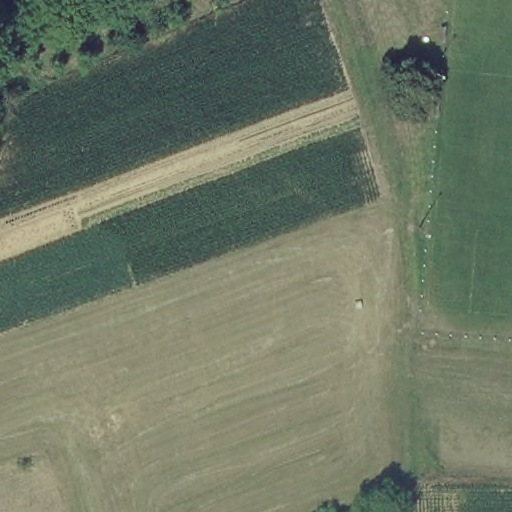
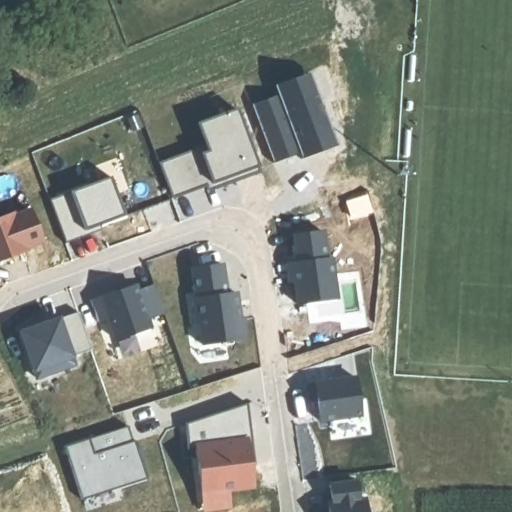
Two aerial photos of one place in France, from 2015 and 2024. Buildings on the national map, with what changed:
new [(308,70),(335,146),(300,158),(298,154),(275,93),(272,84),(308,70)]
new [(275,93),(298,154),(272,163),(250,103),(275,93)]
new [(207,145),(201,125),(240,111),(266,168),(180,203),(167,161),(207,145)]
new [(112,180),(125,218),(68,240),(57,203),(112,180)]
new [(46,244),(0,264),(0,220),(35,206),(46,244)]
new [(290,233),(325,230),(330,256),(337,298),(294,303),(284,262),(292,260),(290,233)]
new [(223,262),(228,291),(191,293),(187,267),(223,262)]
new [(153,280),(168,323),(116,344),(102,300),(153,280)]
new [(191,293),(228,291),(236,290),(246,337),(197,345),(195,336),(192,337),(186,294),(191,293)]
new [(70,314),(81,362),(40,381),(26,330),(70,314)]
new [(355,376),(361,415),(318,422),(311,382),(355,376)]
new [(252,406),(265,497),(205,506),(192,424),(252,406)]
new [(132,424),(147,479),(88,500),(70,450),(132,424)]
new [(365,512),(327,512),(327,480),(358,478),(365,512)]

